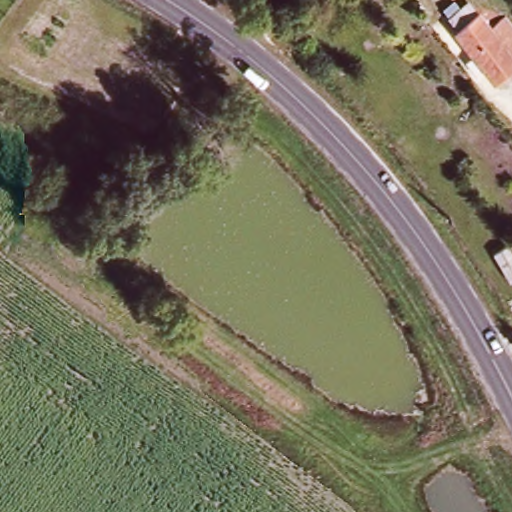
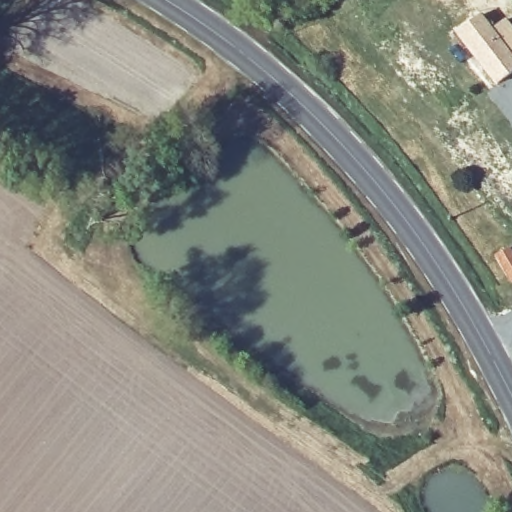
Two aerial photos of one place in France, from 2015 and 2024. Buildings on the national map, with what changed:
unchanged [(488,33),(503,24),(512,36),(512,63),(510,64),(512,67),(512,76),(492,89),(446,26),(472,10),(488,33)]
unchanged [(510,286),(497,256),(512,247),(512,285),(510,286)]

